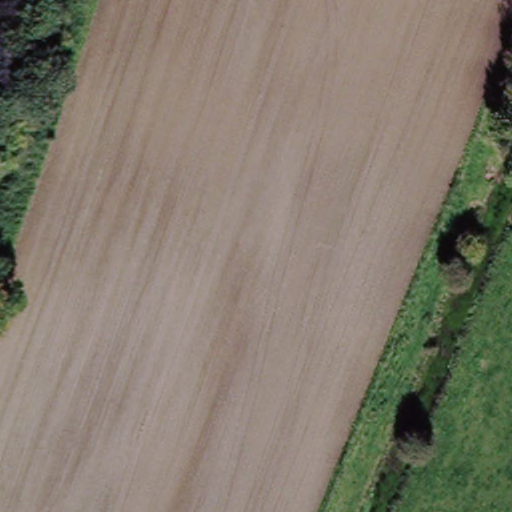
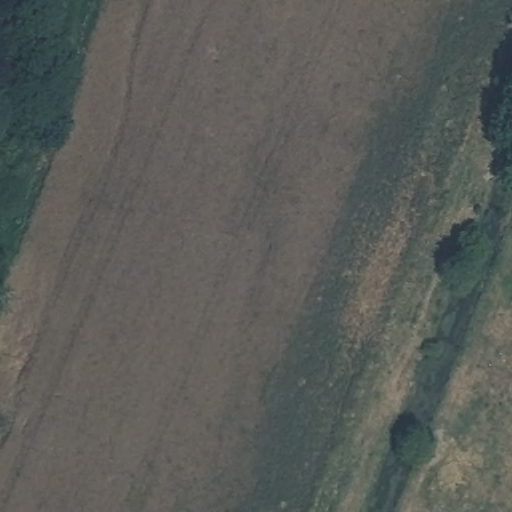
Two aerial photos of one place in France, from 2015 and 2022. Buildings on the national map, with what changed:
[]

